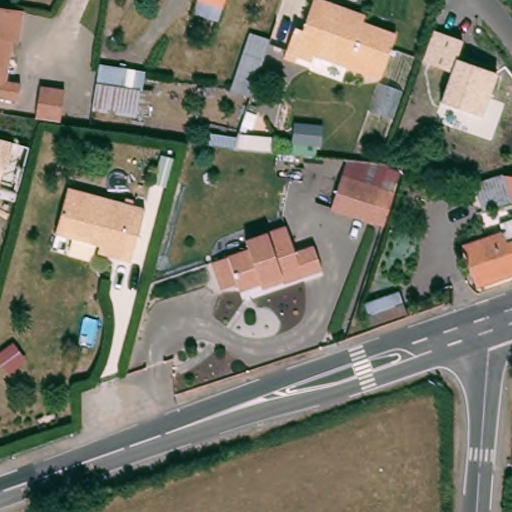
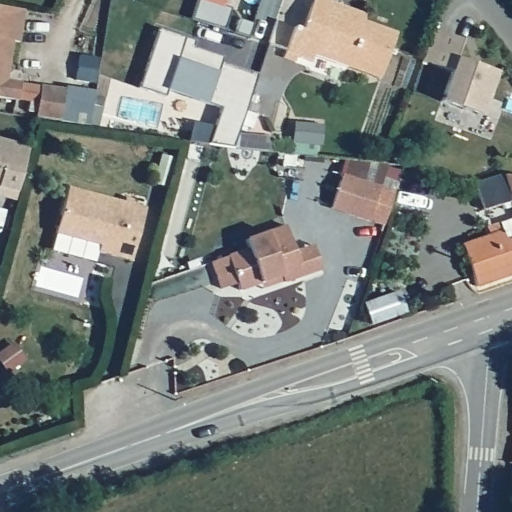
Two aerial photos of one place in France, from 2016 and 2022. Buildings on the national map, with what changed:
unchanged [(198,3),(199,0),(227,0),(223,12),(198,3)]
unchanged [(314,54),(312,61),(297,56),(295,61),(284,57),(295,27),(303,29),(314,0),(325,0),(347,8),(365,15),(363,21),(396,33),(380,78),(314,54)]
unchanged [(19,42),(13,41),(6,80),(21,82),(19,100),(0,97),(0,6),(24,10),(19,42)]
new [(210,142),(222,107),(168,88),(165,95),(140,87),(159,29),(194,40),(192,47),(223,57),(221,62),(257,74),(233,146),(210,142)]
unchanged [(432,29),(464,40),(457,59),(497,73),(483,116),(442,102),(451,71),(421,58),(432,29)]
new [(40,85),(65,89),(60,121),(36,118),(40,85)]
unchanged [(14,202),(0,198),(0,140),(29,147),(14,202)]
unchanged [(336,203),(347,169),(399,186),(389,220),(336,203)]
unchanged [(504,214),(503,210),(483,216),(474,188),(503,179),(506,187),(512,185),(512,212),(504,214)]
unchanged [(131,260),(98,252),(100,245),(55,233),(68,188),(145,208),(131,260)]
unchanged [(477,291),(462,250),(503,235),(499,228),(512,224),(512,280),(477,291)]
unchanged [(265,283),(245,290),(243,283),(227,288),(218,261),(254,249),(250,240),(291,225),(308,275),(289,281),(268,288),(265,283)]
unchanged [(405,312),(372,324),(365,303),(398,292),(405,312)]

